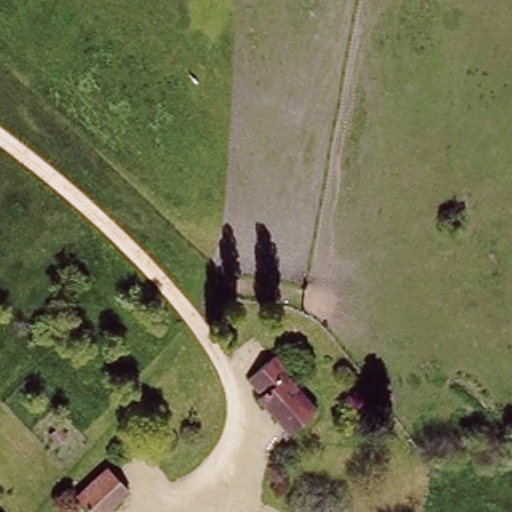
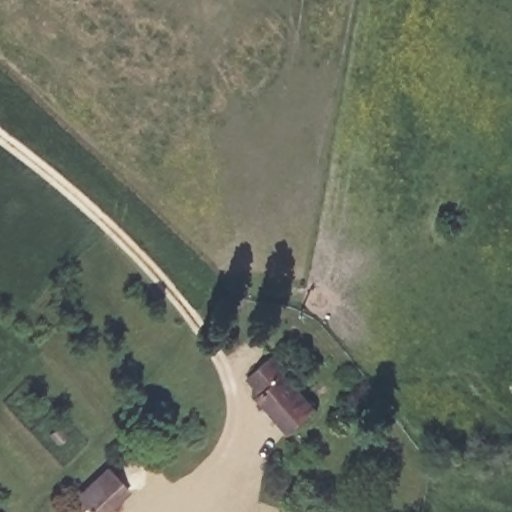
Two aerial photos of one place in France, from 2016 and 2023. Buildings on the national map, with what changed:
unchanged [(316,404),(284,431),(243,380),(274,352),(316,404)]
unchanged [(124,489),(98,511),(79,494),(106,474),(124,489)]

